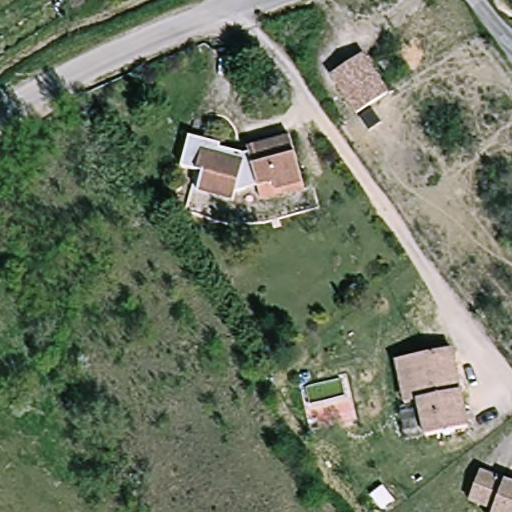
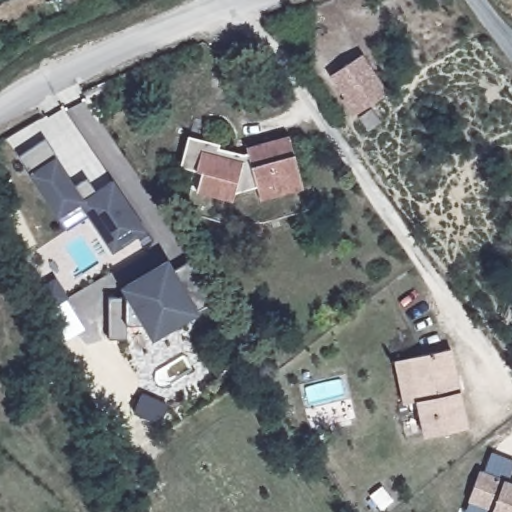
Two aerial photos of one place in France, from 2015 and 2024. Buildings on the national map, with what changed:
unchanged [(359,53),(385,92),(355,113),(329,74),(359,53)]
unchanged [(389,57),(395,67),(386,73),(380,63),(389,57)]
unchanged [(234,201),(198,192),(203,172),(182,166),(190,137),(220,144),(219,149),(245,155),(250,153),(249,148),(291,139),(305,190),(262,201),(259,187),(236,192),(234,201)]
new [(89,217),(67,230),(18,155),(44,140),(73,185),(87,177),(95,192),(114,181),(145,234),(114,252),(89,217)]
new [(127,296),(121,287),(168,258),(176,270),(190,261),(214,300),(198,309),(200,312),(153,341),(143,324),(127,324),(127,339),(109,340),(109,298),(127,296)]
unchanged [(469,428),(425,437),(419,401),(407,404),(399,360),(410,357),(452,349),(469,428)]
unchanged [(512,512),(508,512),(472,498),(484,470),(512,481),(512,512)]

